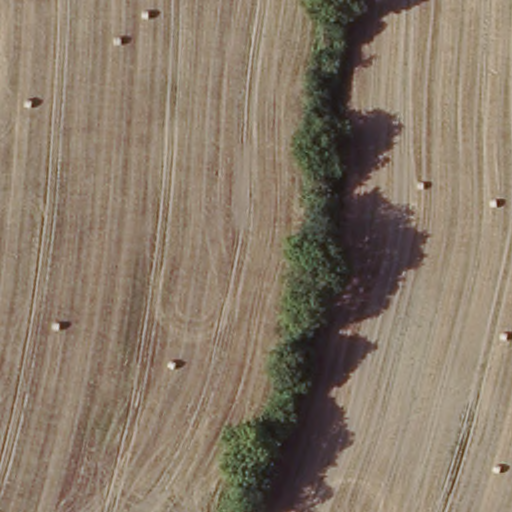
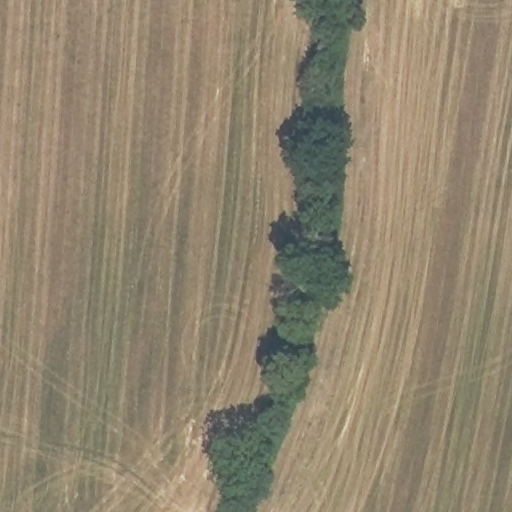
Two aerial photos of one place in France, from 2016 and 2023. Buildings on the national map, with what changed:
[]

